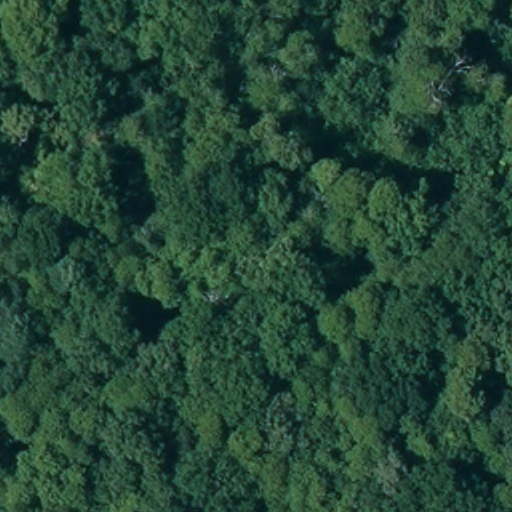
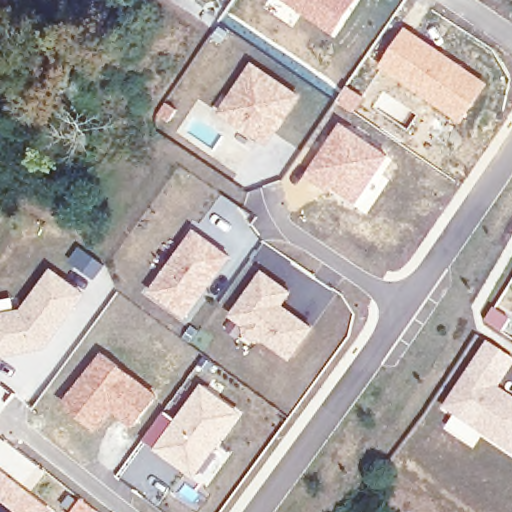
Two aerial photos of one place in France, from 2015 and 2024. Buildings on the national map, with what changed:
new [(280,0),(359,0),(332,37),(280,0)]
new [(403,26),(488,82),(459,122),(378,67),(403,26)]
new [(217,112),(251,60),(300,96),(266,146),(217,112)]
new [(341,121),(389,155),(355,205),(329,187),(327,190),(304,176),(341,121)]
new [(147,292),(194,229),(230,256),(184,318),(147,292)]
new [(77,245),(104,263),(93,278),(67,258),(77,245)]
new [(0,357),(0,311),(19,308),(51,267),(84,292),(45,348),(0,357)]
new [(290,360),(264,341),(258,345),(243,333),(242,325),(228,316),(261,270),(291,292),(282,305),(314,328),(290,360)]
new [(486,341),(512,359),(512,368),(499,388),(512,397),(512,455),(443,408),(486,341)]
new [(101,350),(158,395),(131,428),(112,413),(97,432),(59,405),(101,350)]
new [(154,450),(202,382),(242,413),(193,478),(154,450)]
new [(52,512),(0,512),(0,471),(52,512)]
new [(68,494),(94,512),(72,512),(61,505),(68,494)]

